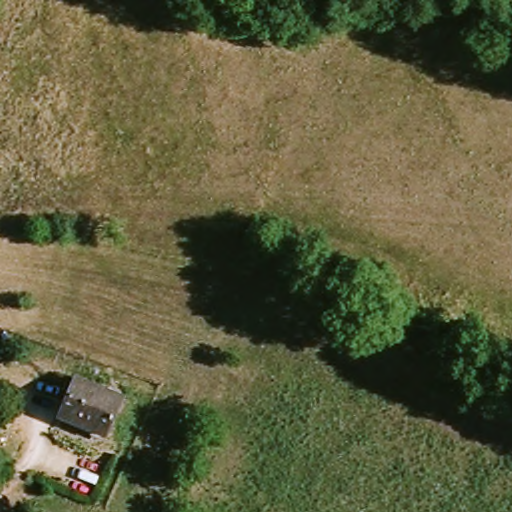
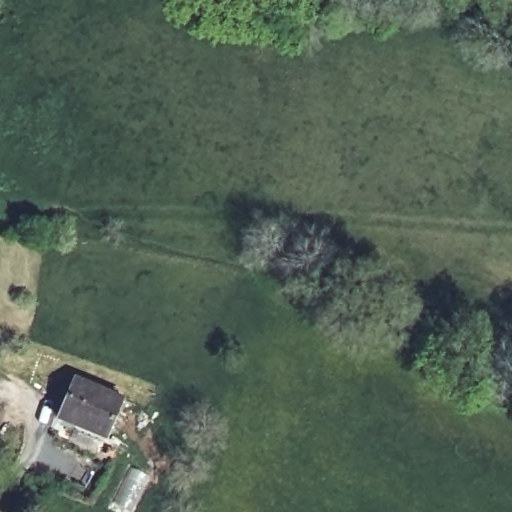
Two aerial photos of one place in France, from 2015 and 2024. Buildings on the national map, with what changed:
unchanged [(105,430),(56,418),(66,375),(116,387),(105,430)]

